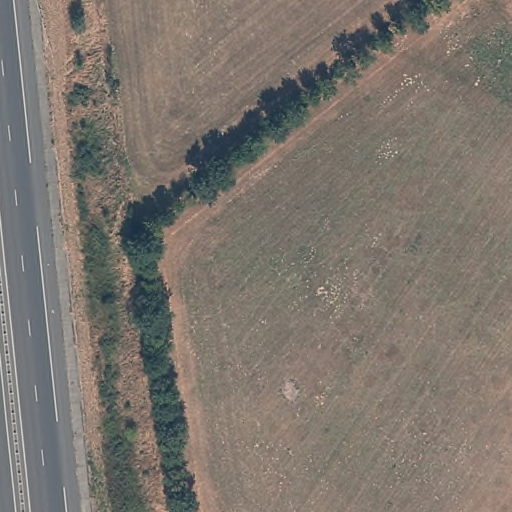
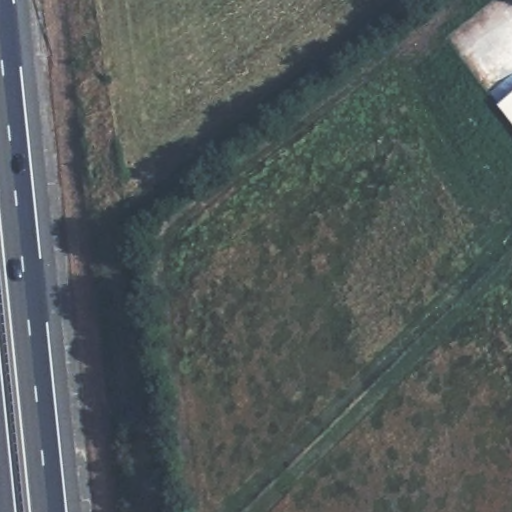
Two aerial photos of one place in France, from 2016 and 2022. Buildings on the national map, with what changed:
new [(512,91),(512,123),(496,104),(512,91)]

